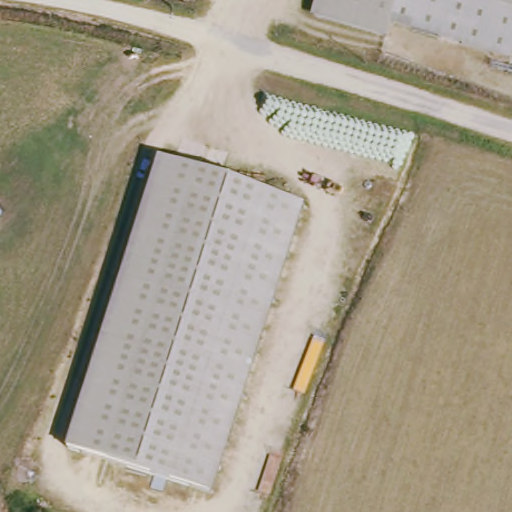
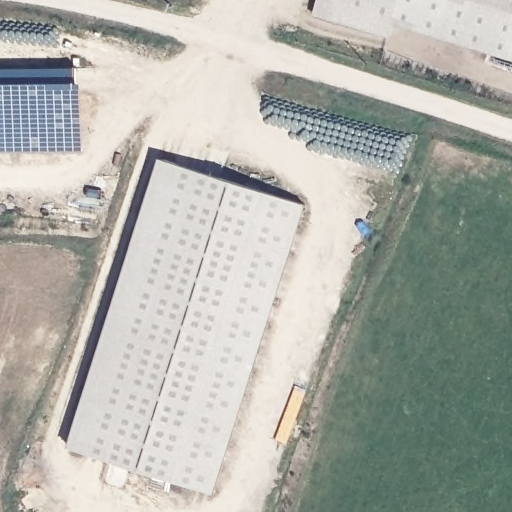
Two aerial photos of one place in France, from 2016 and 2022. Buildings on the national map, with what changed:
unchanged [(398,20),(395,34),(323,11),(327,0),(512,0),(512,54),(398,20)]
new [(0,69),(78,69),(82,152),(0,152),(0,69)]
unchanged [(305,202),(212,492),(67,445),(160,155),(305,202)]

